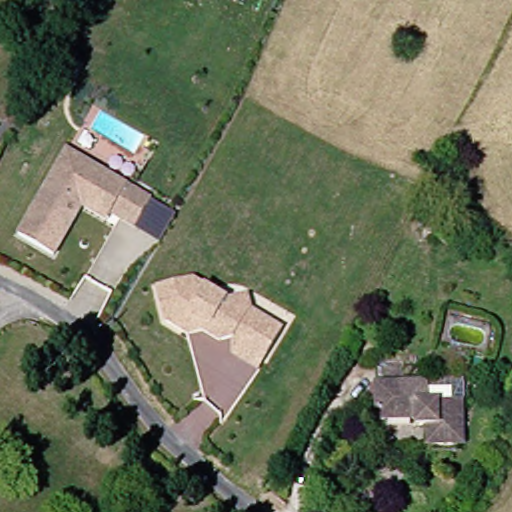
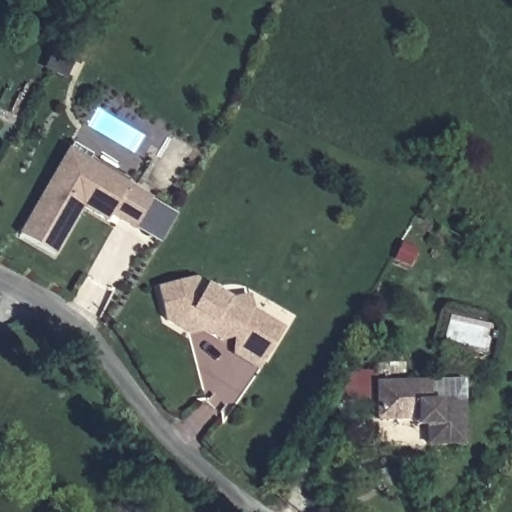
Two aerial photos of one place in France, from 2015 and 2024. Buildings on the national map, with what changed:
unchanged [(69,146),(126,180),(150,195),(135,222),(111,208),(110,210),(95,202),(97,200),(91,196),(84,199),(53,249),(19,228),(54,171),(69,146)]
unchanged [(232,354),(234,337),(220,340),(195,323),(189,332),(166,316),(160,285),(196,278),(230,298),(239,312),(251,311),(282,332),(270,350),(256,371),(232,354)]
unchanged [(433,444),(433,418),(383,419),(382,385),(430,383),(466,382),(467,403),(468,443),(433,444)]

